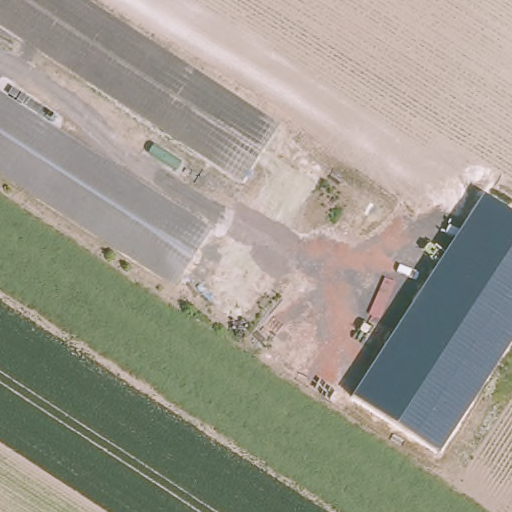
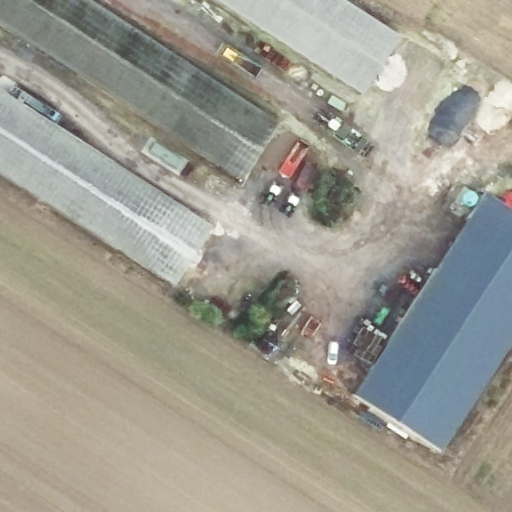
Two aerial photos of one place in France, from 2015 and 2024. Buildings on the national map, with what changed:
unchanged [(284,118),(249,170),(0,10),(0,0),(101,0),(284,118)]
new [(400,41),(365,95),(218,0),(337,0),(400,41)]
unchanged [(0,164),(0,91),(210,226),(179,277),(0,164)]
unchanged [(512,337),(438,449),(353,392),(484,191),(512,210),(512,337)]

